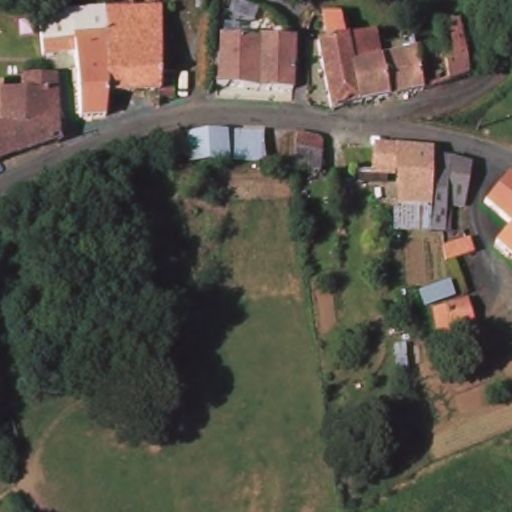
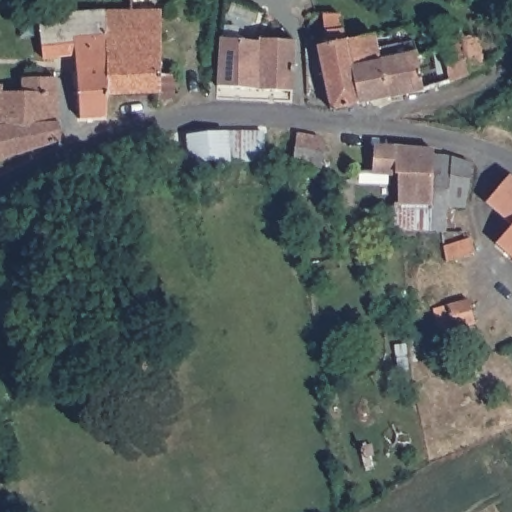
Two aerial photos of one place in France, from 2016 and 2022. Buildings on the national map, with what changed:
unchanged [(167,0),(166,15),(164,95),(110,100),(107,17),(130,16),(130,0),(167,0)]
unchanged [(250,17),(220,12),(220,0),(236,0),(254,6),(250,17)]
unchanged [(53,19),(107,17),(110,100),(110,121),(86,122),(77,56),(43,60),(39,20),(53,19)]
unchanged [(320,47),(313,17),(330,17),(337,44),(354,107),(325,114),(308,51),(320,47)]
unchanged [(483,72),(466,78),(447,84),(438,52),(432,27),(454,23),(458,43),(475,39),(483,72)]
unchanged [(261,87),(219,84),(222,36),(223,26),(252,29),(250,39),(263,40),(261,87)]
unchanged [(404,31),(410,60),(416,92),(354,107),(337,44),(404,31)]
unchanged [(264,36),(296,40),(295,91),(261,87),(263,40),(264,36)]
unchanged [(438,52),(447,84),(416,92),(410,60),(438,52)]
unchanged [(27,102),(26,83),(57,82),(59,100),(63,143),(19,158),(17,131),(0,131),(0,93),(5,92),(6,105),(27,102)]
unchanged [(19,158),(0,164),(0,131),(17,131),(19,158)]
unchanged [(267,164),(230,164),(192,167),(189,133),(265,132),(267,164)]
unchanged [(293,133),(317,136),(316,141),(313,170),(288,171),(292,150),(293,133)]
unchanged [(390,175),(390,184),(365,184),(364,174),(358,173),(359,146),(436,151),(436,157),(435,232),(407,231),(397,231),(397,204),(404,204),(403,175),(390,175)]
unchanged [(473,163),(470,206),(451,206),(448,232),(435,232),(436,157),(455,157),(473,163)]
unchanged [(492,204),(512,177),(512,222),(492,204)]
unchanged [(501,247),(512,235),(512,257),(501,247)]
unchanged [(468,236),(473,251),(448,261),(443,246),(468,236)]
unchanged [(458,287),(467,312),(447,321),(450,327),(437,332),(425,301),(458,287)]

